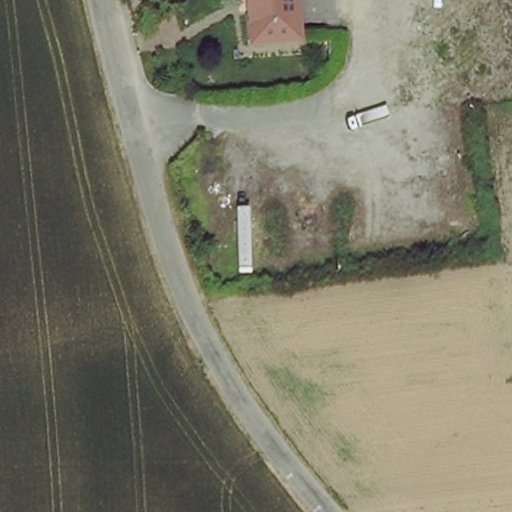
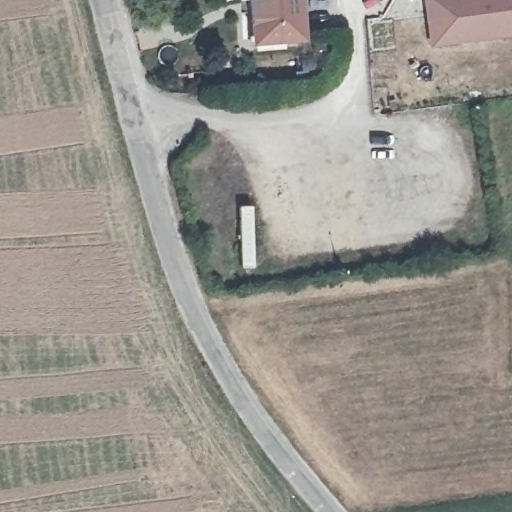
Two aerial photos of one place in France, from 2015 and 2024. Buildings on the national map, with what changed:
unchanged [(297,0),(299,39),(253,43),(251,0),(297,0)]
new [(421,0),(512,0),(512,35),(428,46),(421,0)]

